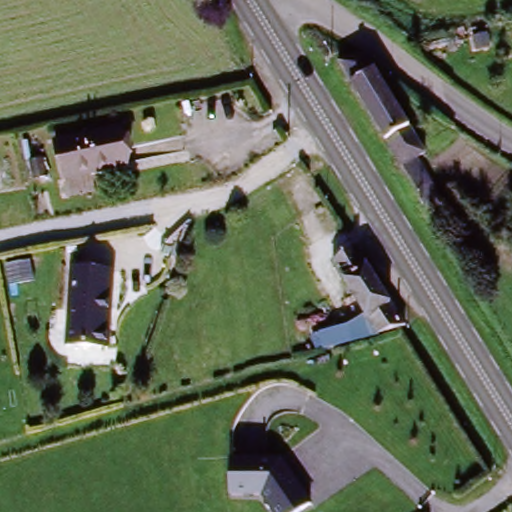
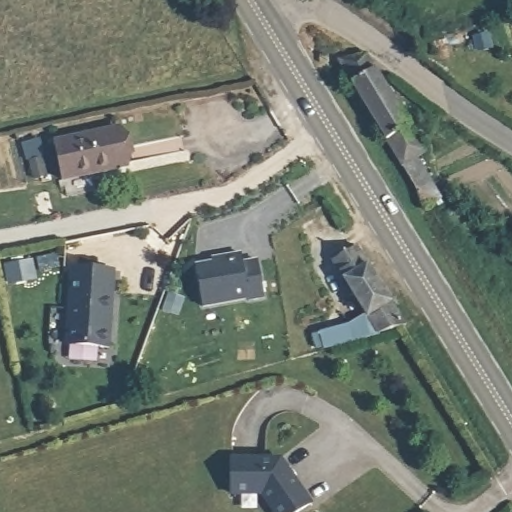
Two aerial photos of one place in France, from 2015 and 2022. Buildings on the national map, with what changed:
unchanged [(449,180),(438,186),(448,201),(432,211),(344,67),(379,71),(449,180)]
unchanged [(122,130),(128,168),(92,174),(95,185),(67,189),(59,141),(122,130)]
new [(249,303),(247,299),(204,308),(196,266),(214,262),(212,258),(242,253),(243,263),(257,260),(265,301),(249,303)]
unchanged [(360,317),(331,268),(355,254),(415,327),(322,353),(315,330),(360,317)]
unchanged [(113,267),(108,344),(65,342),(70,263),(113,267)]
unchanged [(234,456),(278,454),(312,501),(296,512),(275,512),(262,492),(234,491),(234,456)]

